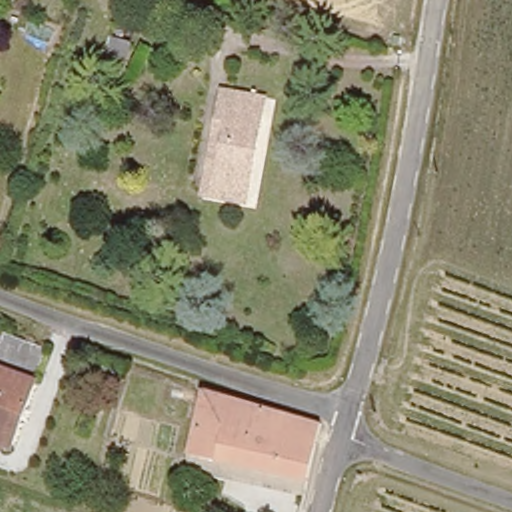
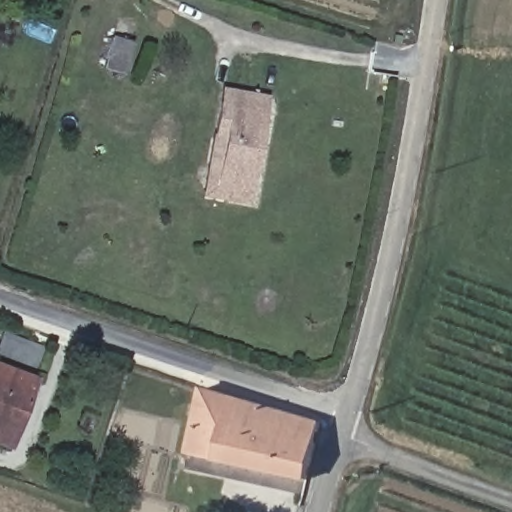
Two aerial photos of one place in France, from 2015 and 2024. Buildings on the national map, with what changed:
unchanged [(250,202),(200,193),(222,81),(269,90),(250,202)]
unchanged [(0,334),(43,350),(32,382),(0,371),(0,334)]
unchanged [(0,447),(0,371),(32,382),(10,450),(0,447)]
unchanged [(304,478),(189,442),(209,385),(323,425),(304,478)]
unchanged [(187,450),(202,455),(195,482),(178,476),(187,450)]

